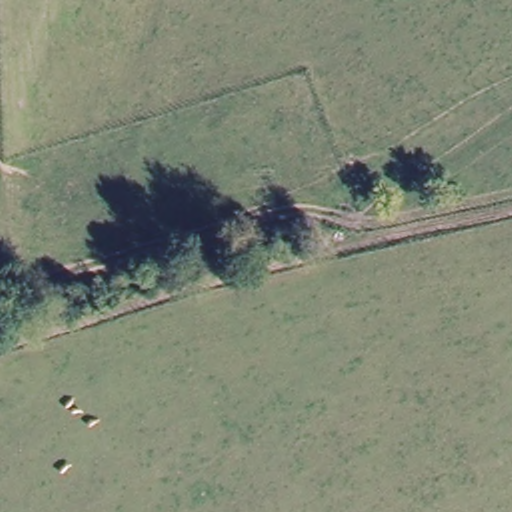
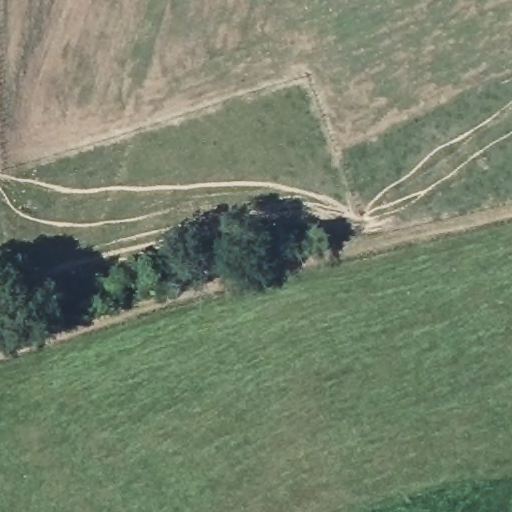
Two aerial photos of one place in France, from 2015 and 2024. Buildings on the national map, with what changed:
[]

